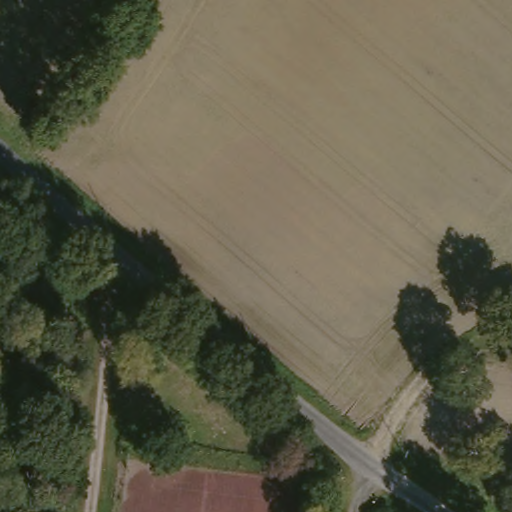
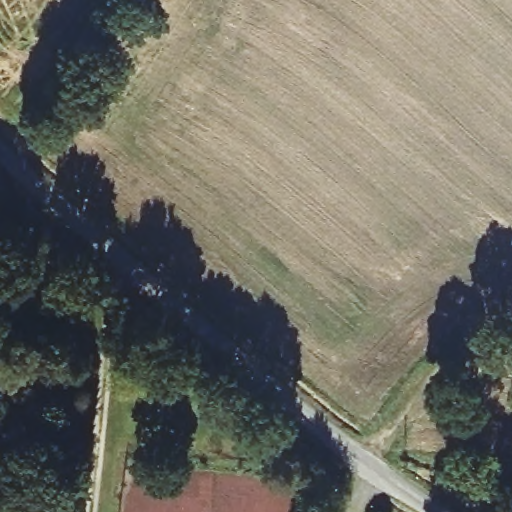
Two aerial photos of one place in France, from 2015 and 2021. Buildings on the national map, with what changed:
[]

